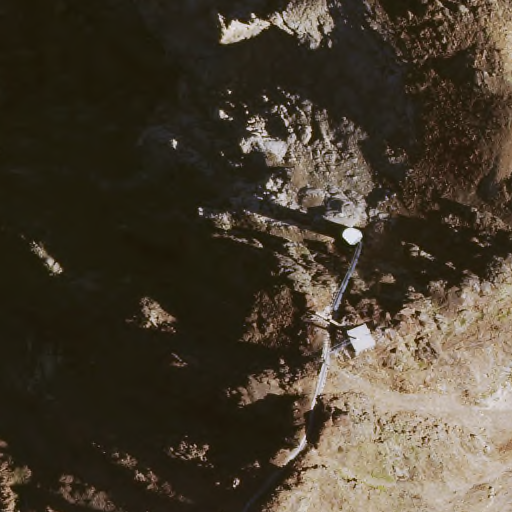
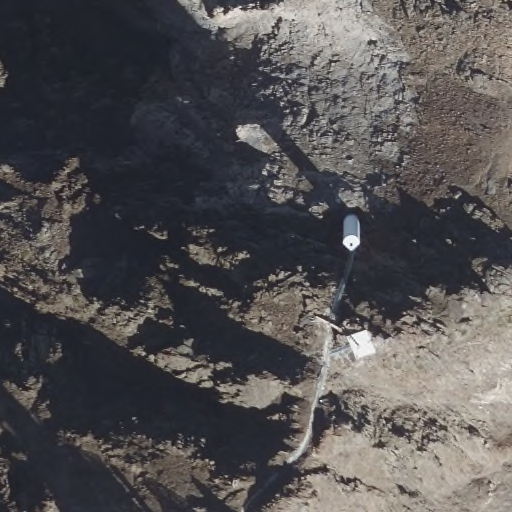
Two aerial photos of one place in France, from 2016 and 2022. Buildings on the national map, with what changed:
unchanged [(361,240),(353,243),(347,242),(343,236),(345,231),(348,228),(355,228),(359,232),(361,240)]

